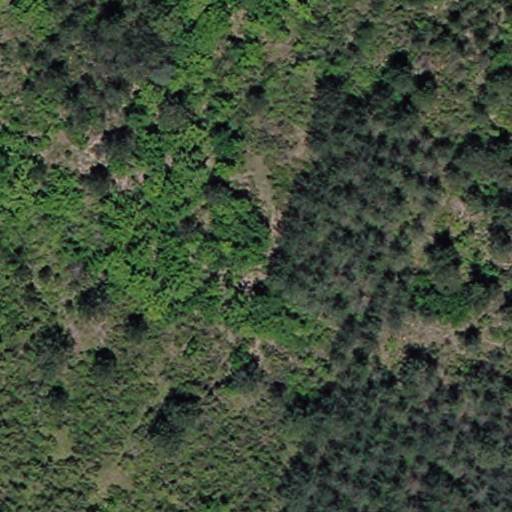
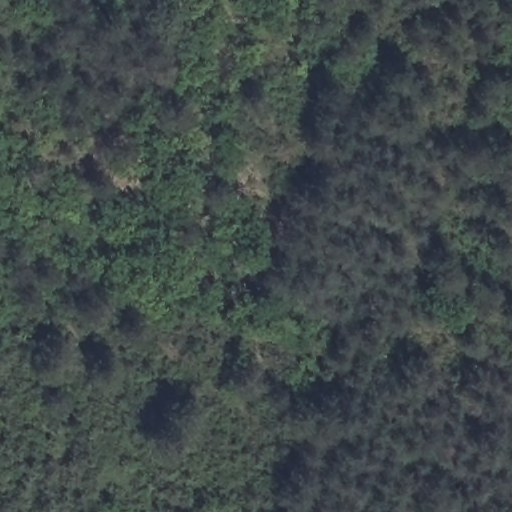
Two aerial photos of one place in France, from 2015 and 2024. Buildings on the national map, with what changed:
[]

